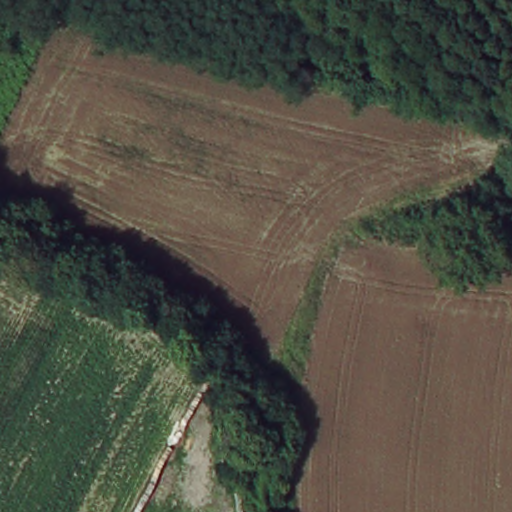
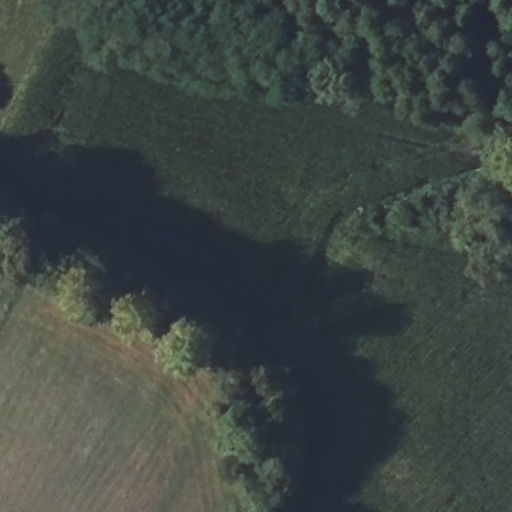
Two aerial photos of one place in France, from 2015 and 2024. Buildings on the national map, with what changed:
[]

